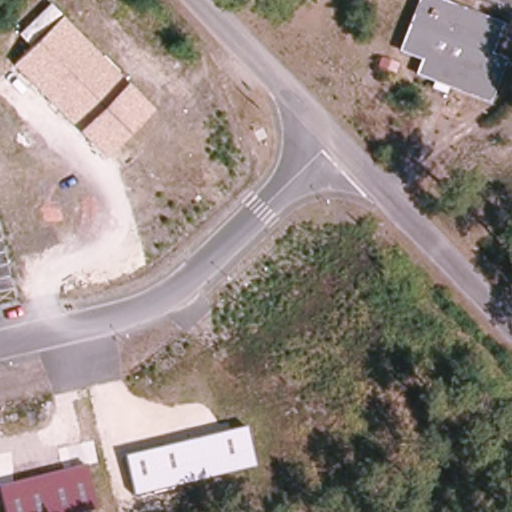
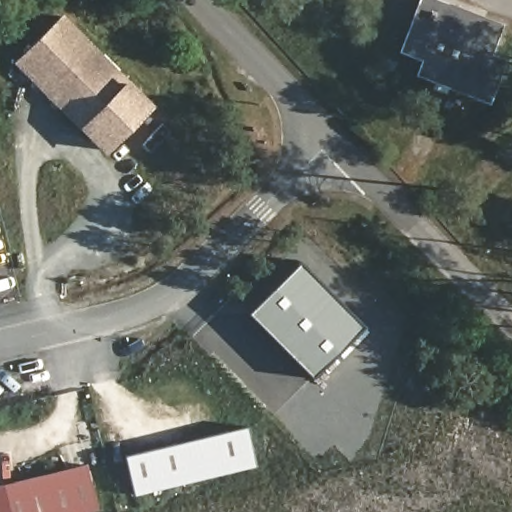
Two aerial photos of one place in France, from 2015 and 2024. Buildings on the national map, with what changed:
unchanged [(495,54),(509,63),(493,112),(414,80),(423,59),(403,49),(421,0),(446,0),(508,23),(495,54)]
unchanged [(106,156),(12,63),(30,45),(19,34),(51,3),(152,106),(106,156)]
new [(247,313),(299,262),(363,327),(312,378),(247,313)]
unchanged [(136,494),(126,456),(246,428),(255,467),(136,494)]
unchanged [(83,512),(4,512),(0,496),(0,483),(87,462),(97,508),(83,512)]
new [(0,512),(0,496),(4,512),(0,512)]

